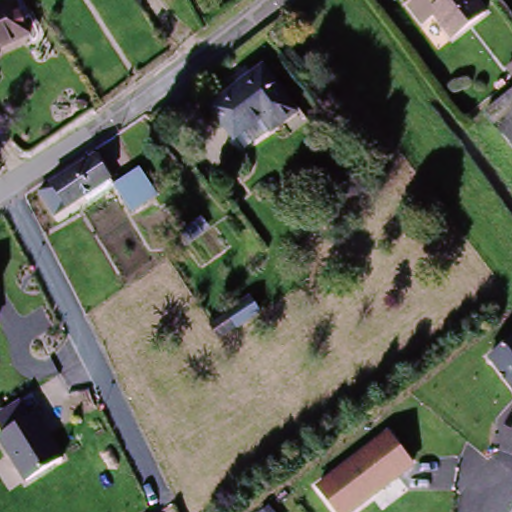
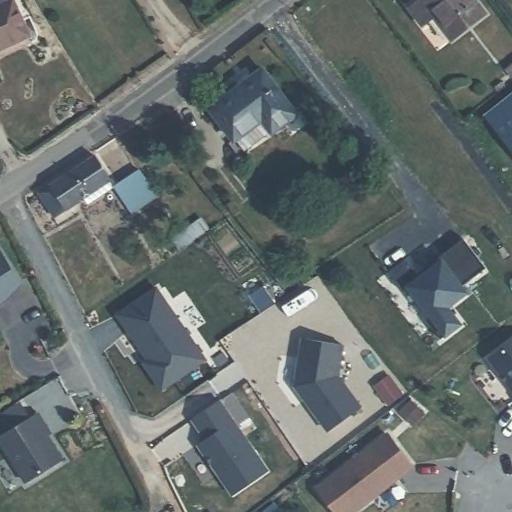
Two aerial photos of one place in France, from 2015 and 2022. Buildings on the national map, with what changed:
unchanged [(484,0),(491,10),(458,36),(440,14),(430,21),(416,5),(422,0),(484,0)]
unchanged [(494,0),(495,0),(495,1),(494,0)]
unchanged [(30,37),(0,50),(0,9),(15,2),(30,37)]
unchanged [(272,128),(246,148),(236,135),(235,136),(211,105),(265,65),(298,111),(278,126),(273,130),(272,128)]
unchanged [(486,111),(512,90),(512,144),(486,111)]
unchanged [(91,198),(87,192),(55,212),(40,189),(96,153),(115,183),(91,198)]
unchanged [(152,200),(135,210),(117,181),(136,169),(145,184),(143,185),(152,200)]
new [(410,262),(421,277),(442,260),(438,257),(465,236),(488,265),(465,284),(470,290),(450,305),(464,321),(443,338),(429,320),(434,316),(410,287),(404,291),(392,276),(410,262)]
new [(207,362),(164,391),(144,363),(149,360),(117,317),(156,289),(207,362)]
unchanged [(0,297),(0,295),(1,297),(0,297)]
demolished [(216,333),(208,322),(221,313),(230,324),(216,333)]
new [(300,361),(305,358),(308,337),(343,343),(338,374),(362,406),(330,430),(303,395),(296,385),(300,361)]
unchanged [(486,359),(512,338),(512,395),(486,359)]
new [(199,446),(207,440),(193,420),(221,402),(269,473),(234,497),(211,464),(207,458),(199,446)]
unchanged [(66,458),(21,483),(0,446),(0,435),(40,413),(66,458)]
unchanged [(314,486),(389,430),(415,467),(357,512),(335,512),(314,486)]

